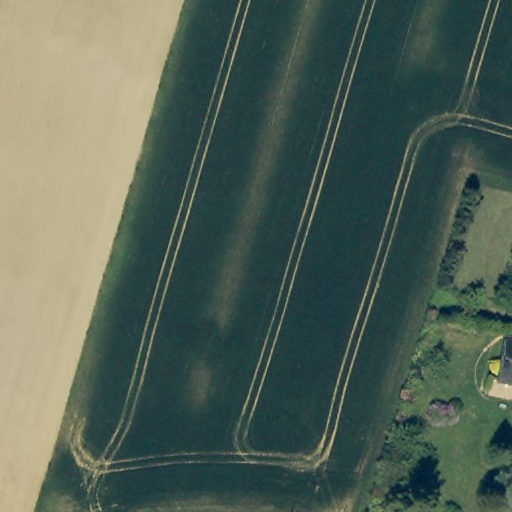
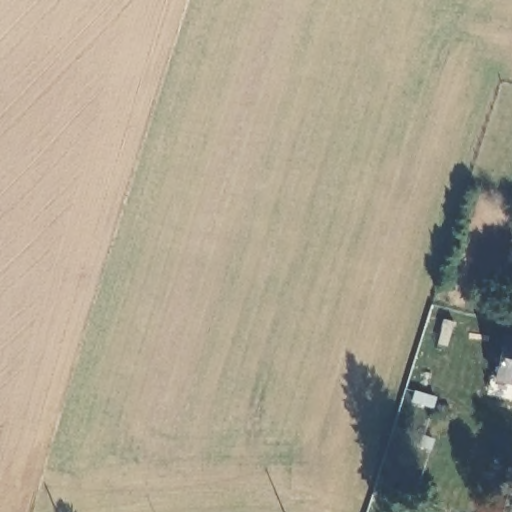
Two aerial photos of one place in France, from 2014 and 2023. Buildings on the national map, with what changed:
unchanged [(508,335),(512,336),(512,382),(496,379),(508,335)]

